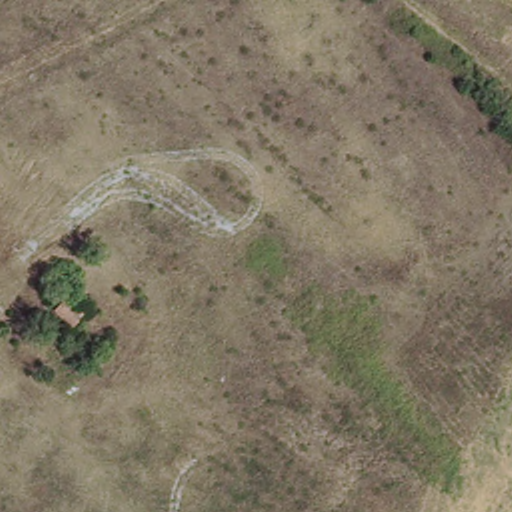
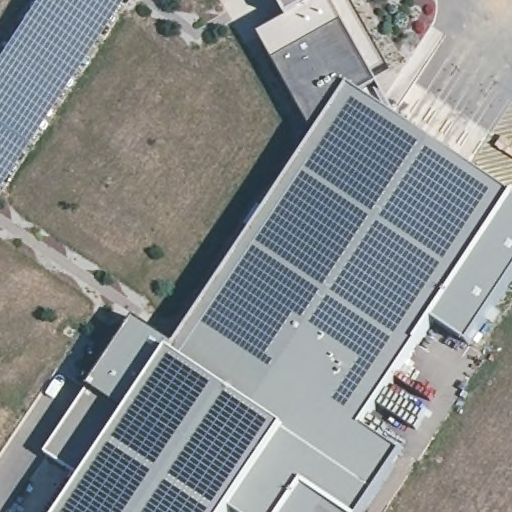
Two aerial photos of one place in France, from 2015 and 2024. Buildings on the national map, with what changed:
new [(373,77),(394,118),(512,195),(512,284),(471,348),(434,323),(363,428),(404,456),(366,512),(235,512),(234,512),(68,512),(87,483),(46,456),(91,391),(136,323),(175,349),(317,137),(258,37),(290,20),(278,0),(349,0),(388,69),(373,77)]
demolished [(79,310),(67,323),(52,309),(65,297),(79,310)]

